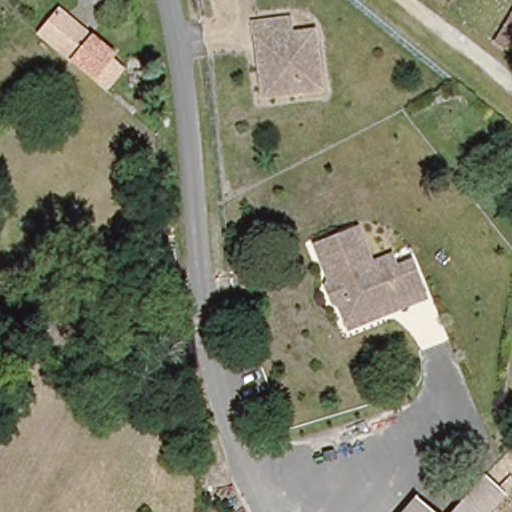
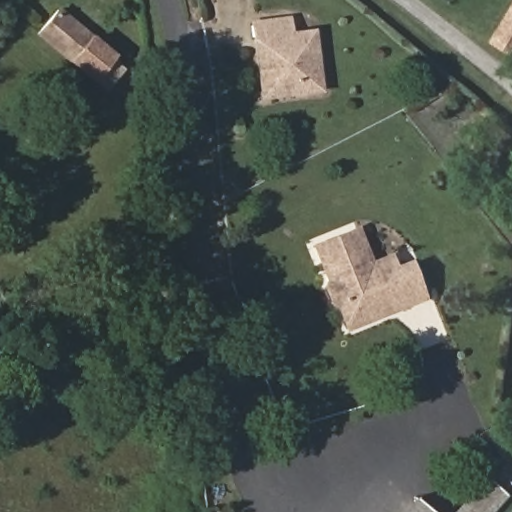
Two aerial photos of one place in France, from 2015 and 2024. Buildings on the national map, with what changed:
unchanged [(512,10),(512,51),(493,38),(512,10)]
unchanged [(104,80),(50,36),(70,14),(124,57),(104,80)]
unchanged [(258,45),(255,25),(291,20),(293,35),(315,32),(323,90),(302,92),(265,97),(258,45)]
unchanged [(344,306),(337,303),(331,290),(335,282),(321,248),(362,231),(376,266),(391,260),(402,255),(407,268),(415,265),(430,299),(404,310),(354,330),(344,306)]
unchanged [(483,471),(505,489),(487,512),(451,512),(483,471)]
unchanged [(414,497),(433,512),(402,512),(414,497)]

